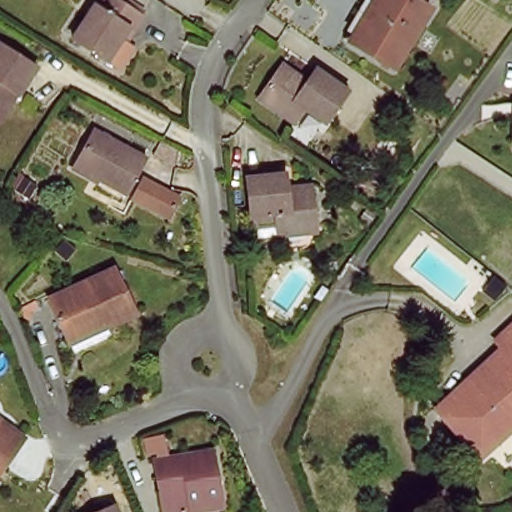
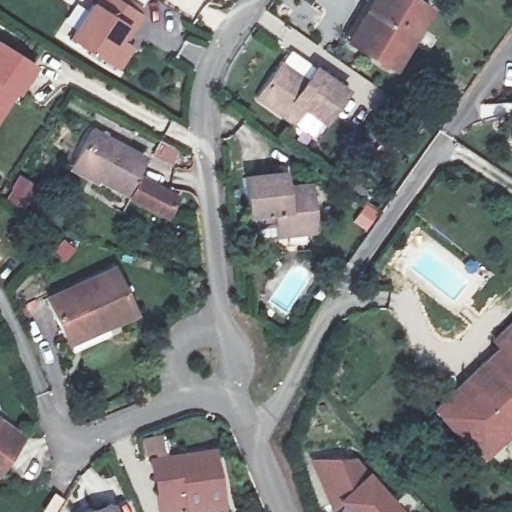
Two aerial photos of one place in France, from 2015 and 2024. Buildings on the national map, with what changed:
unchanged [(97,12),(106,0),(114,0),(144,20),(133,36),(122,31),(103,65),(68,45),(90,9),(97,12)]
unchanged [(435,12),(395,70),(356,45),(344,37),(373,0),(417,0),(435,12)]
unchanged [(0,131),(0,42),(41,69),(23,96),(1,132),(0,131)]
unchanged [(288,126),(252,100),(277,68),(301,86),(315,66),(349,88),(324,126),(312,143),(288,126)]
unchanged [(148,158),(128,196),(71,166),(92,127),(148,158)]
unchanged [(248,221),(242,182),(281,176),(282,193),(311,190),(317,234),(316,236),(276,239),(274,230),(250,235),(248,221)]
unchanged [(2,238),(0,241),(0,237),(2,238)]
unchanged [(63,332),(49,298),(114,269),(134,317),(104,329),(68,345),(63,332)]
unchanged [(438,419),(496,362),(486,350),(505,333),(512,340),(512,437),(482,465),(438,419)]
unchanged [(28,439),(0,476),(0,417),(28,439)]
unchanged [(190,512),(163,512),(146,471),(206,444),(226,495),(190,512)]
new [(366,475),(370,471),(404,511),(404,512),(346,512),(337,502),(330,511),(309,460),(354,457),(366,475)]
unchanged [(100,512),(115,506),(118,512),(100,512)]

